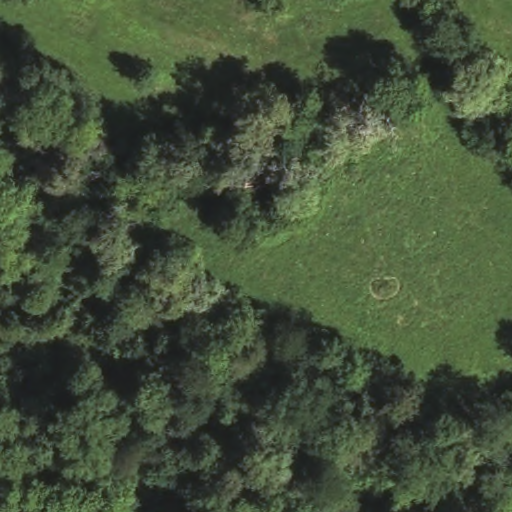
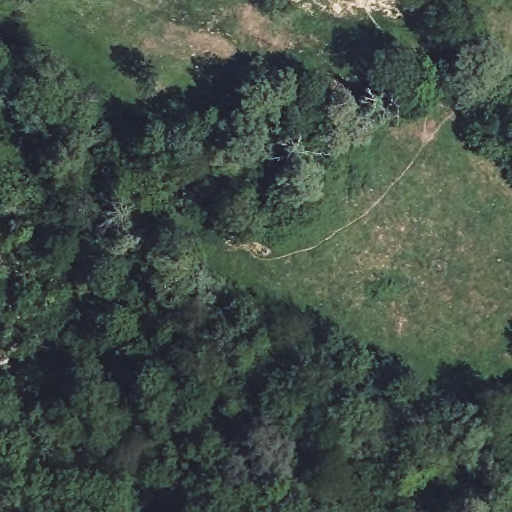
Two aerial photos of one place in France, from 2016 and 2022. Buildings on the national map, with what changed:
[]

